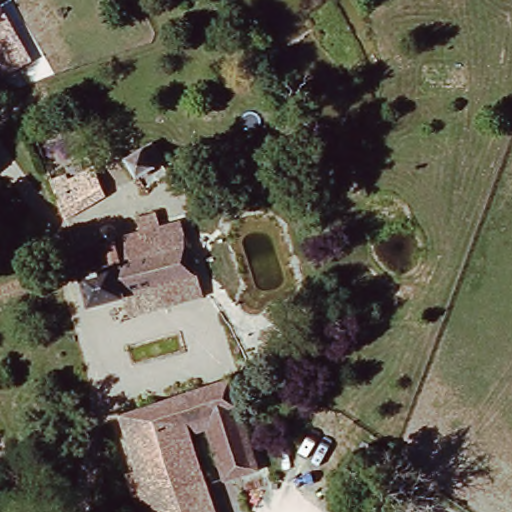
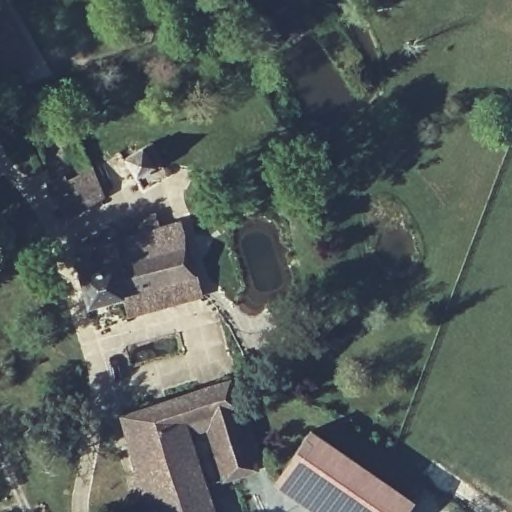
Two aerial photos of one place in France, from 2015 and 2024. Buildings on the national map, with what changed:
new [(29,59),(0,74),(0,7),(29,59)]
unchanged [(159,150),(144,163),(133,145),(146,134),(159,150)]
unchanged [(82,170),(95,208),(87,212),(68,218),(54,184),(68,177),(82,170)]
unchanged [(84,307),(75,277),(67,254),(100,247),(178,226),(194,281),(84,307)]
unchanged [(213,484),(196,429),(181,433),(205,512),(141,512),(111,414),(219,384),(246,474),(213,484)]
new [(309,429),(412,501),(405,512),(313,512),(271,484),(309,429)]

